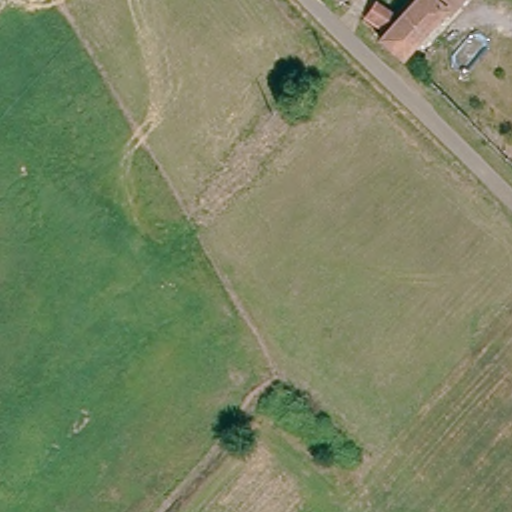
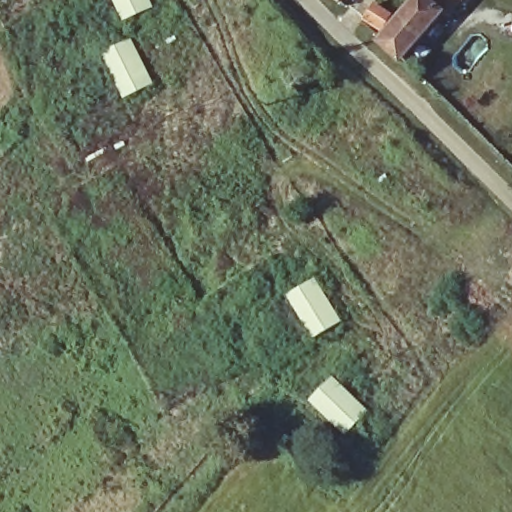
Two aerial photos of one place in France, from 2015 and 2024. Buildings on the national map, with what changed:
unchanged [(389,22),(373,13),(381,0),(382,0),(397,8),(389,22)]
unchanged [(404,55),(385,36),(420,0),(468,0),(455,13),(450,8),(404,55)]
new [(126,97),(102,54),(131,39),(154,83),(139,93),(126,97)]
new [(316,339),(288,297),(303,287),(320,283),(325,285),(322,290),(327,292),(325,297),(332,300),(327,311),(340,317),(326,332),(316,339)]

